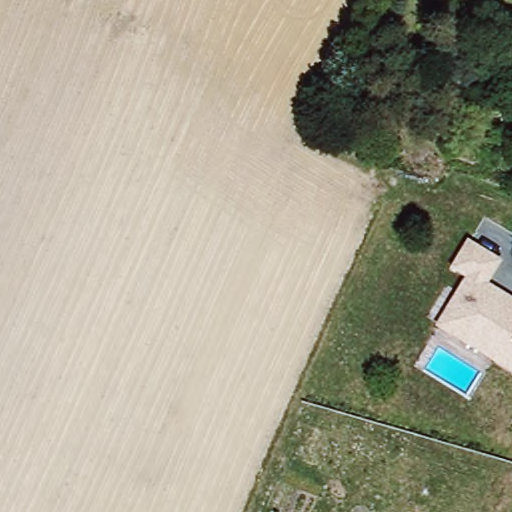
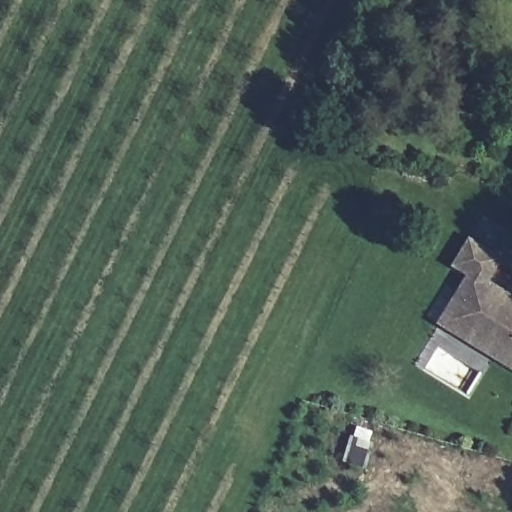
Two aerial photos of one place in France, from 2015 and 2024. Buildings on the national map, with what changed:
unchanged [(488,282),(512,296),(512,373),(435,324),(465,277),(451,267),(467,240),(501,260),(488,282)]

